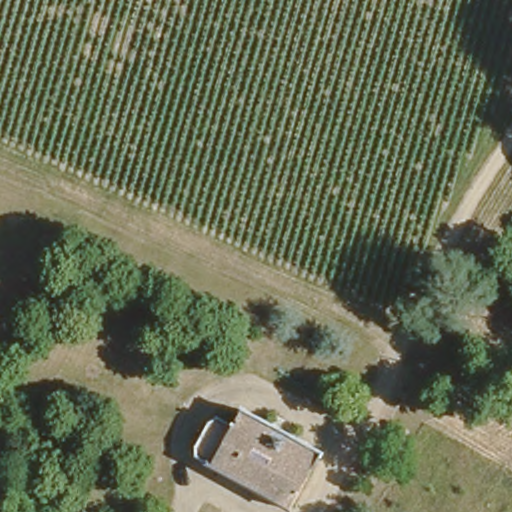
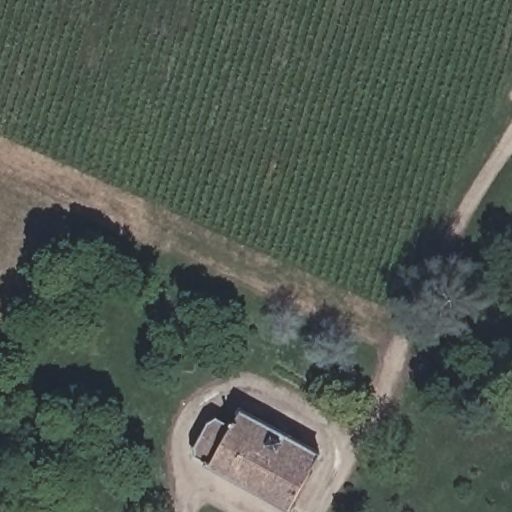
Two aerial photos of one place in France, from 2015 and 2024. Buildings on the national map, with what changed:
unchanged [(199,461),(185,453),(208,411),(226,421),(235,405),(317,451),(286,508),(199,461)]

